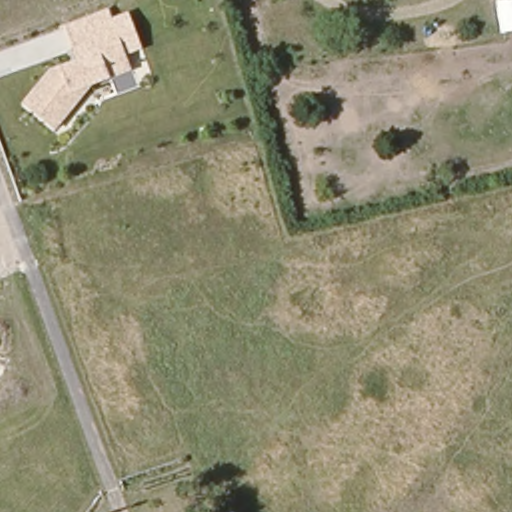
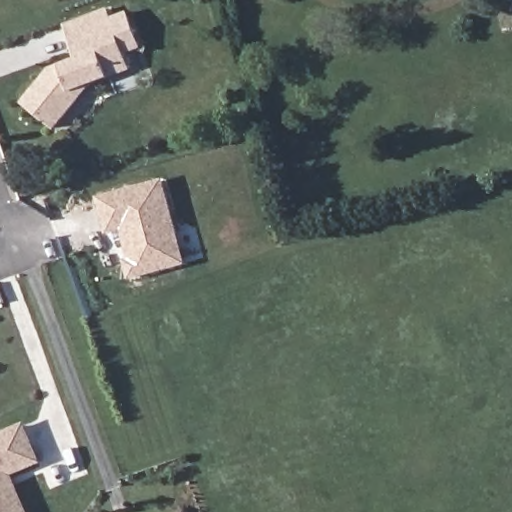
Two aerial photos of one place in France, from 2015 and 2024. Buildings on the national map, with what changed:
unchanged [(50,129),(21,102),(50,69),(84,57),(81,49),(74,52),(65,26),(109,11),(124,55),(130,71),(108,78),(89,86),(73,102),(50,129)]
new [(129,281),(124,261),(128,259),(121,231),(107,235),(97,197),(163,179),(187,265),(129,281)]
new [(29,512),(0,512),(0,432),(26,421),(43,463),(15,476),(29,512)]

